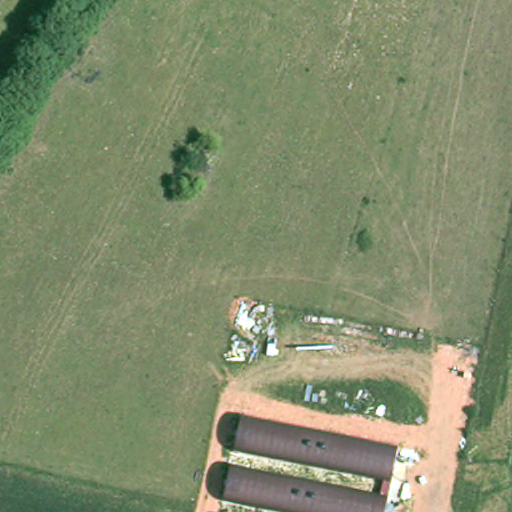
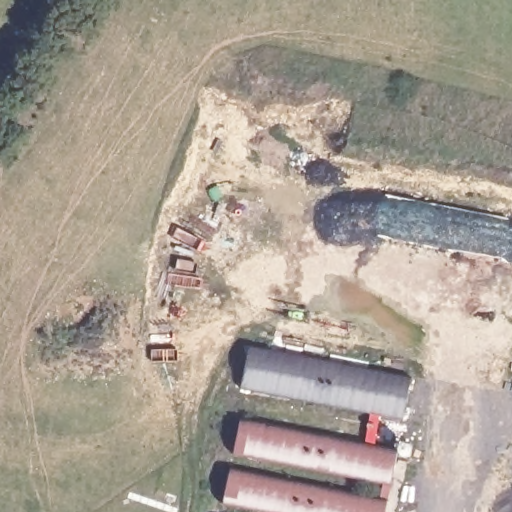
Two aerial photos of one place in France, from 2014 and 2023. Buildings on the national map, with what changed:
new [(402,419),(242,388),(250,348),(411,378),(402,419)]
unchanged [(385,512),(266,512),(223,503),(229,470),(377,498),(380,483),(233,452),(240,418),(397,450),(385,512)]

